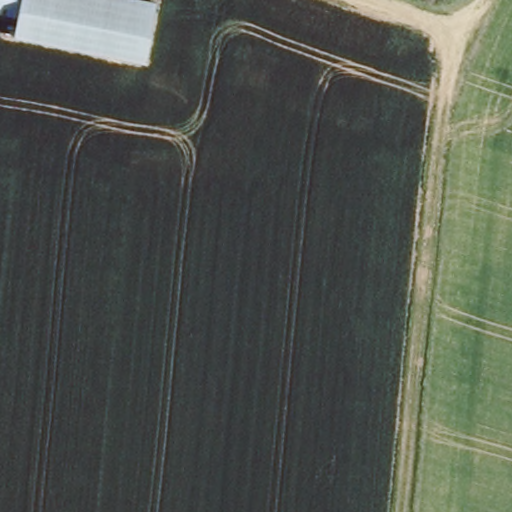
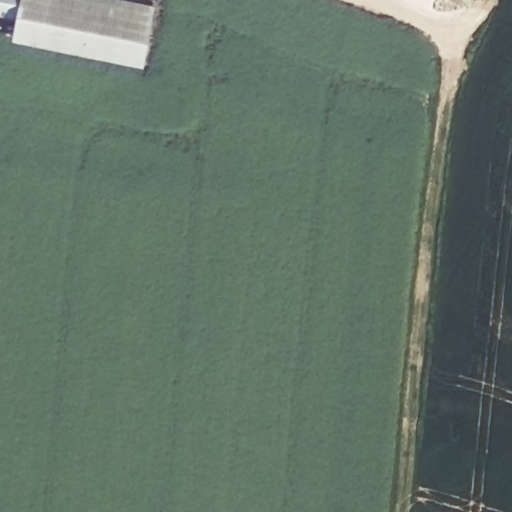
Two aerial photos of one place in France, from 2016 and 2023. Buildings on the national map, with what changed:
unchanged [(20,14),(0,11),(0,0),(22,0),(20,14)]
unchanged [(125,2),(115,55),(16,34),(20,14),(22,0),(115,0),(125,2)]
unchanged [(125,2),(153,7),(143,60),(115,55),(125,2)]

